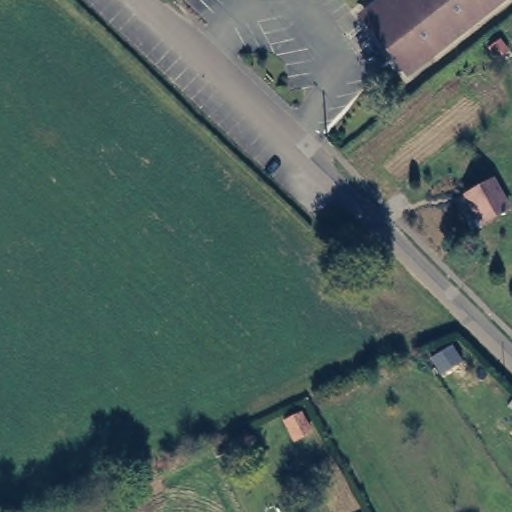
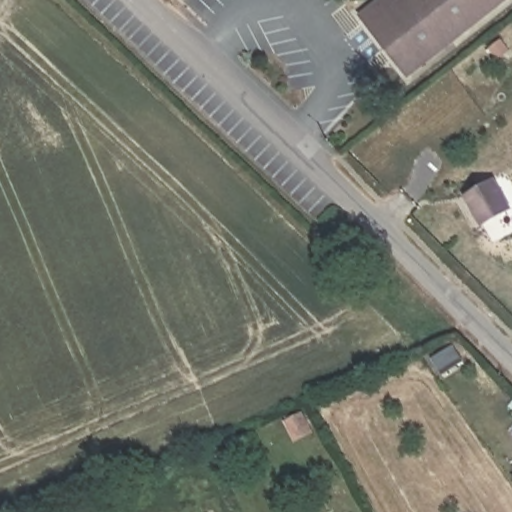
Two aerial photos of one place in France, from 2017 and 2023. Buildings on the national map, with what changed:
unchanged [(418,0),(511,0),(413,78),(369,22),(396,0),(410,0),(413,5),(418,0)]
unchanged [(504,210),(476,224),(463,196),(492,181),(504,210)]

